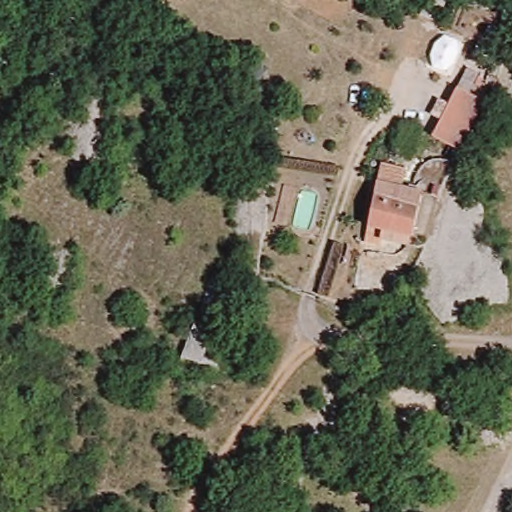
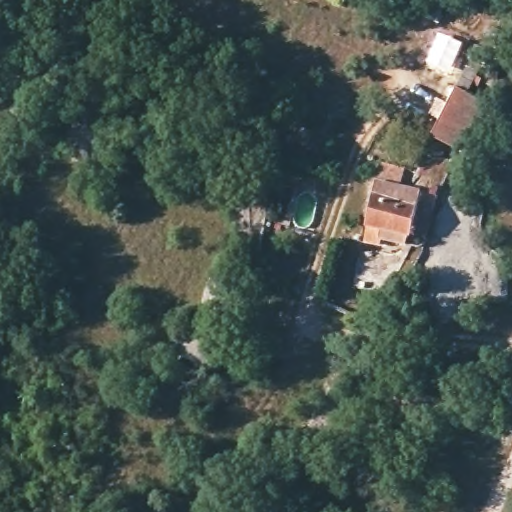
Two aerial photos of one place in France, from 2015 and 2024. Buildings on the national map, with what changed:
unchanged [(429,133),(456,86),(482,101),(454,147),(429,133)]
unchanged [(399,246),(387,240),(377,237),(379,226),(367,221),(378,175),(426,191),(412,237),(409,247),(399,246)]

